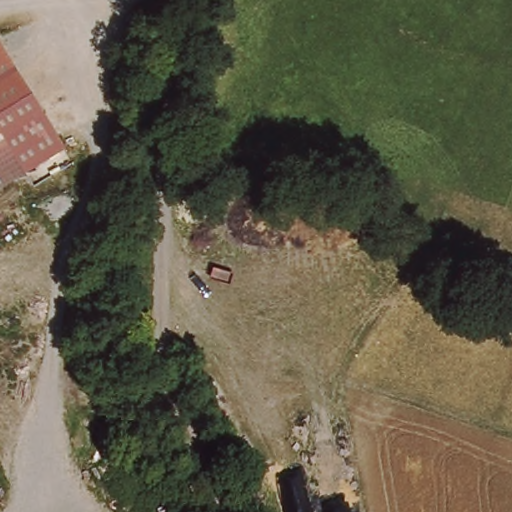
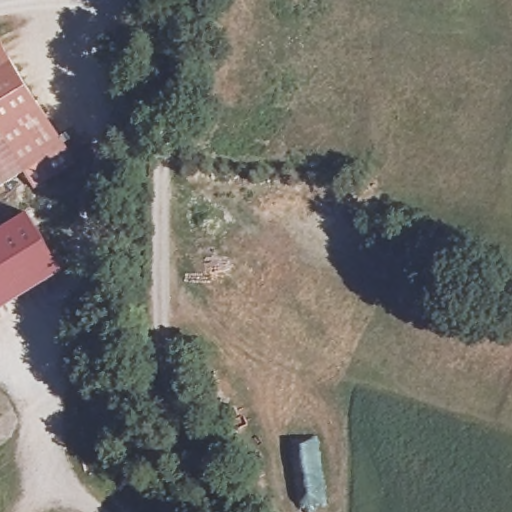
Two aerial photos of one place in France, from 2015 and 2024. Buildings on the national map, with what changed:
unchanged [(0,125),(0,38),(66,147),(28,170),(0,125)]
unchanged [(28,170),(0,188),(0,125),(28,170)]
new [(30,214),(66,274),(0,315),(0,233),(30,214)]

